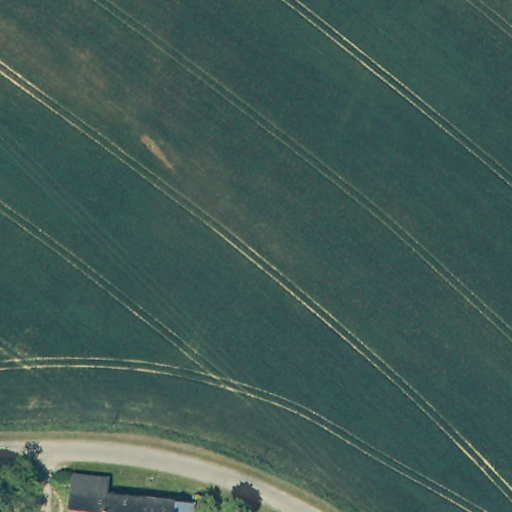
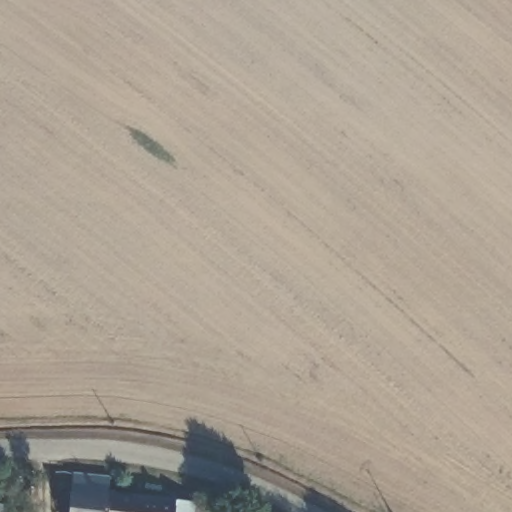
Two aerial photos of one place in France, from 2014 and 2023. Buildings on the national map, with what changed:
unchanged [(67,512),(71,473),(104,475),(102,493),(192,501),(191,512),(67,512)]
unchanged [(8,503),(7,512),(0,512),(0,502),(8,503)]

